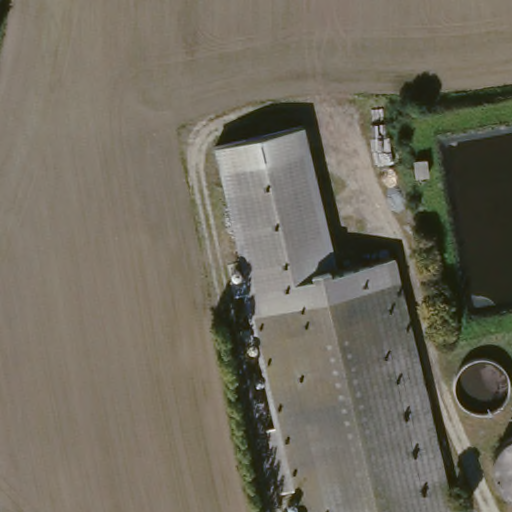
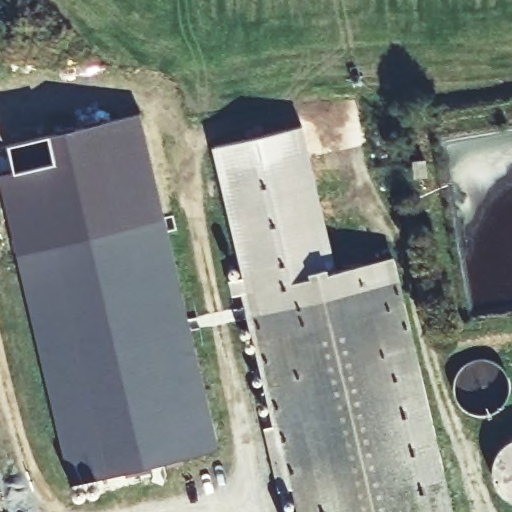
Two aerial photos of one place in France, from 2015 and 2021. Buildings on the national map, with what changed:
unchanged [(211,146),(304,126),(336,267),(395,255),(454,512),(297,512),(211,146)]
new [(221,448),(72,483),(17,252),(166,217),(221,448)]

